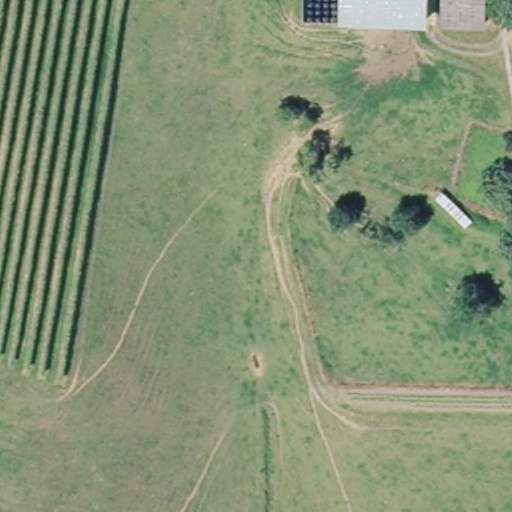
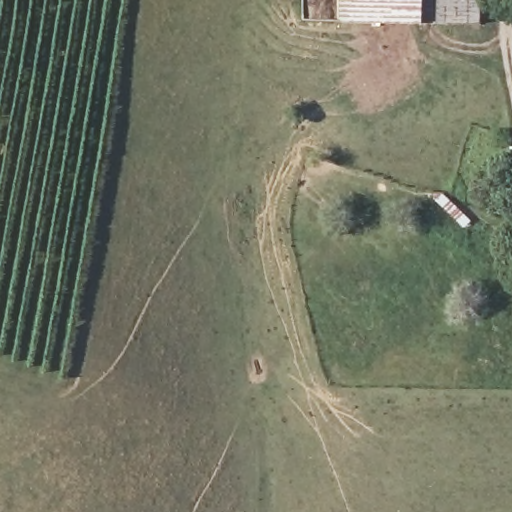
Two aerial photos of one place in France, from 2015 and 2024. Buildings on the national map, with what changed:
unchanged [(342,24),(342,0),(426,0),(426,23),(342,24)]
unchanged [(486,22),(447,23),(447,0),(486,0),(486,15),(486,22)]

